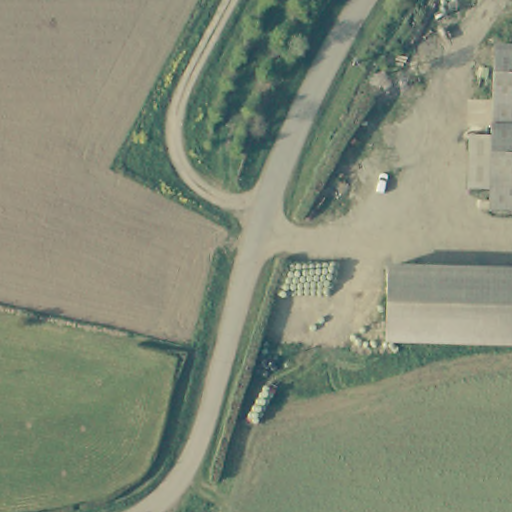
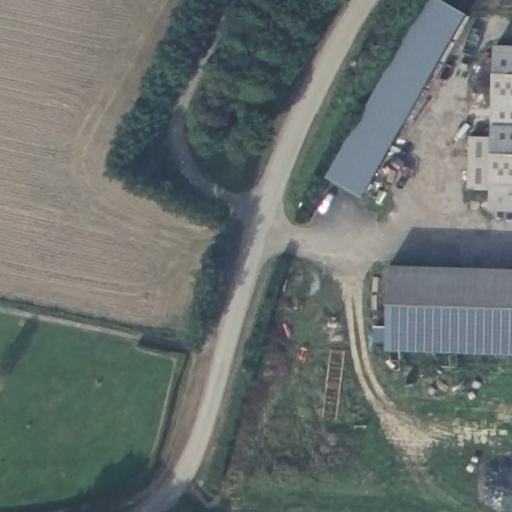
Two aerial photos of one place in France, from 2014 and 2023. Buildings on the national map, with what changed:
new [(362,198),(326,177),(428,0),(439,0),(466,15),(362,198)]
unchanged [(471,186),(471,133),(493,134),(495,44),(512,44),(512,208),(491,208),(491,187),(471,186)]
unchanged [(389,266),(512,268),(512,344),(388,341),(389,266)]

